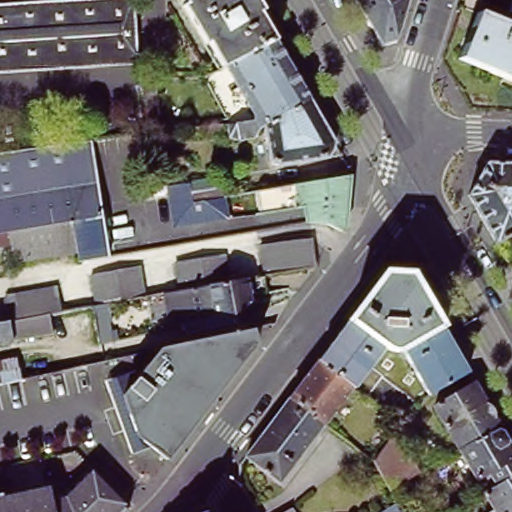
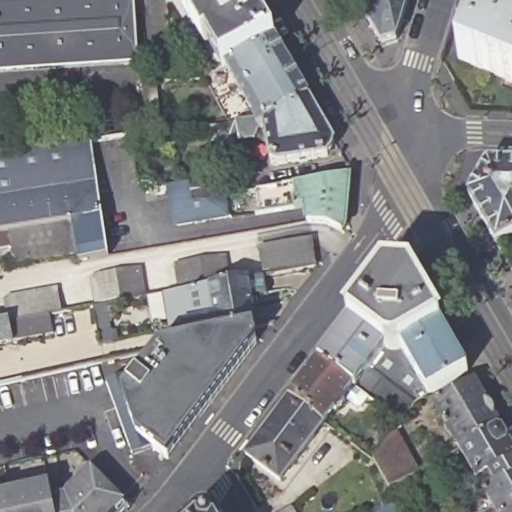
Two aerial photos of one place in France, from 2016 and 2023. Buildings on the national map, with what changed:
unchanged [(0,71),(0,8),(120,0),(135,0),(138,63),(0,71)]
unchanged [(277,44),(224,76),(186,11),(190,9),(185,0),(251,0),(277,44)]
unchanged [(392,43),(377,46),(350,0),(405,0),(392,43)]
unchanged [(512,2),(512,27),(503,24),(512,2)]
unchanged [(503,24),(512,27),(512,81),(460,60),(479,14),(503,24)]
unchanged [(307,96),(264,122),(234,126),(210,84),(224,76),(277,44),(307,96)]
unchanged [(337,147),(331,158),(257,172),(246,167),(245,157),(241,157),(239,149),(230,144),(217,146),(207,144),(206,130),(234,126),(264,122),(307,96),(337,147)]
unchanged [(110,261),(81,267),(79,255),(76,225),(0,235),(0,156),(95,144),(110,261)]
unchanged [(479,180),(489,164),(512,164),(512,199),(479,180)]
unchanged [(172,227),(166,188),(186,184),(215,180),(219,199),(222,217),(172,227)]
unchanged [(496,243),(469,197),(479,180),(512,199),(512,235),(496,243)]
unchanged [(340,234),(337,237),(322,230),(304,228),(300,210),(256,218),(252,198),(346,181),(340,234)]
unchanged [(15,248),(0,249),(0,235),(76,225),(79,255),(17,262),(15,248)]
unchanged [(317,263),(266,272),(261,243),(283,239),(306,237),(314,235),(317,263)]
unchanged [(184,287),(180,261),(227,252),(231,279),(184,287)]
unchanged [(149,294),(99,303),(94,272),(110,270),(144,264),(149,294)]
unchanged [(7,281),(0,282),(0,268),(5,267),(7,281)]
unchanged [(319,356),(384,268),(411,270),(468,370),(429,392),(402,345),(402,346),(401,346),(400,347),(399,347),(398,347),(397,348),(396,348),(395,348),(394,348),(393,347),(392,347),(391,347),(390,346),(389,345),(388,345),(388,344),(387,344),(387,343),(387,342),(386,342),(356,384),(352,381),(319,356)]
unchanged [(185,340),(182,323),(175,325),(169,290),(184,287),(231,279),(265,273),(267,289),(252,293),(257,324),(256,324),(231,330),(221,332),(185,340)]
unchanged [(7,302),(12,301),(12,297),(60,288),(64,314),(12,323),(11,324),(7,302)]
unchanged [(12,323),(16,344),(0,347),(0,325),(11,324),(12,323)]
unchanged [(260,342),(169,458),(152,445),(135,449),(113,375),(143,367),(145,374),(147,367),(152,358),(159,346),(185,340),(221,332),(231,330),(256,324),(260,342)]
unchanged [(342,395),(345,397),(336,408),(334,406),(324,420),(290,395),(319,356),(352,381),(342,395)]
unchanged [(3,387),(0,387),(0,370),(20,366),(23,382),(3,387)]
unchanged [(460,446),(435,404),(475,381),(500,424),(460,446)]
unchanged [(281,477),(247,453),(290,395),(324,420),(281,477)]
unchanged [(500,424),(512,445),(512,474),(485,490),(460,446),(500,424)]
unchanged [(418,471),(391,487),(373,457),(394,429),(418,471)]
unchanged [(121,512),(0,512),(0,466),(77,452),(126,507),(121,512)]
unchanged [(482,512),(493,505),(485,490),(512,474),(512,512),(482,512)]
unchanged [(403,512),(381,512),(397,503),(403,512)]
unchanged [(293,512),(288,512),(292,510),(293,512)]

